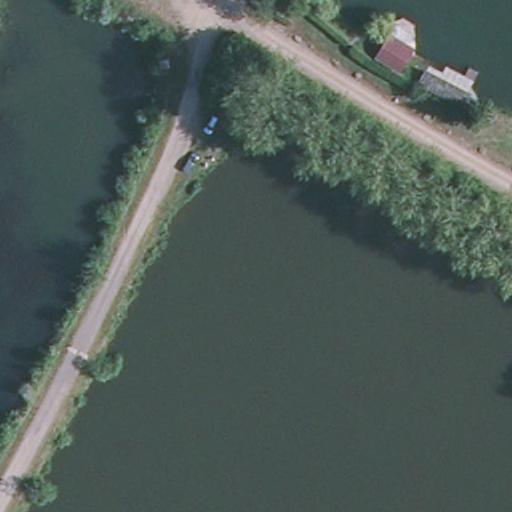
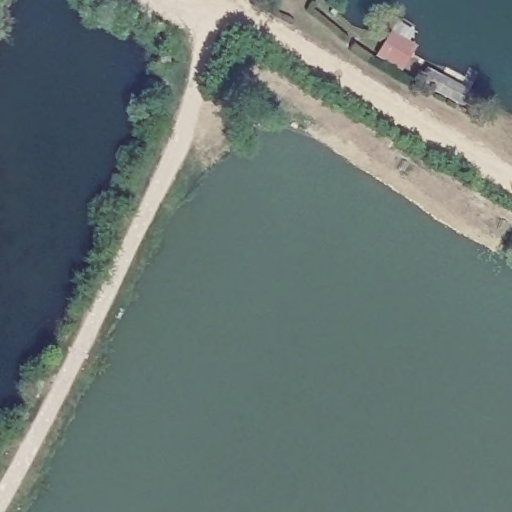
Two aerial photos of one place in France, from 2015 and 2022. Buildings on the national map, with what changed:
unchanged [(370,57),(380,38),(409,55),(400,68),(370,57)]
unchanged [(415,82),(424,65),(469,90),(461,104),(415,82)]

